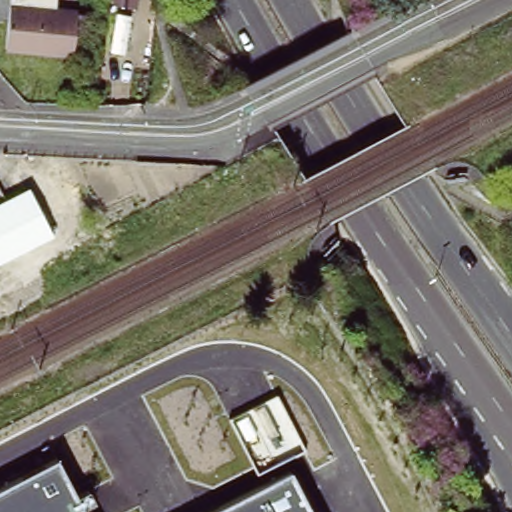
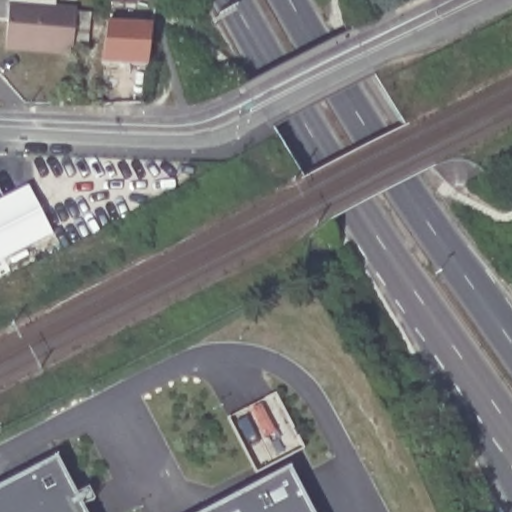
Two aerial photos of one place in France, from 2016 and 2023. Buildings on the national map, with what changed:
unchanged [(56,10),(76,12),(72,56),(6,50),(7,22),(0,21),(0,0),(57,0),(56,10)]
new [(119,0),(138,0),(138,6),(119,5),(119,0)]
new [(154,25),(149,67),(102,65),(107,23),(154,25)]
unchanged [(0,207),(31,191),(54,235),(0,263),(0,207)]
unchanged [(84,512),(0,512),(0,487),(57,457),(84,512)]
unchanged [(312,512),(205,512),(289,468),(312,512)]

